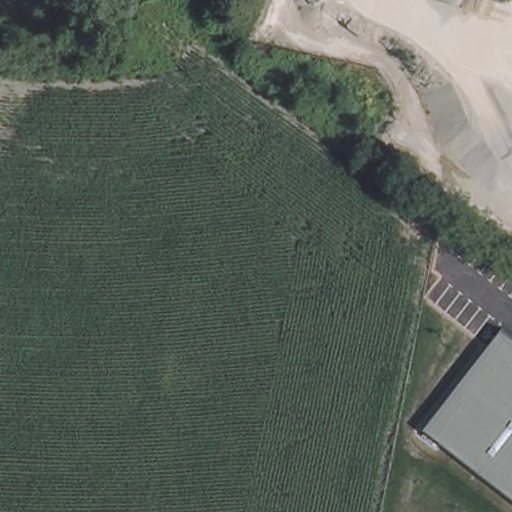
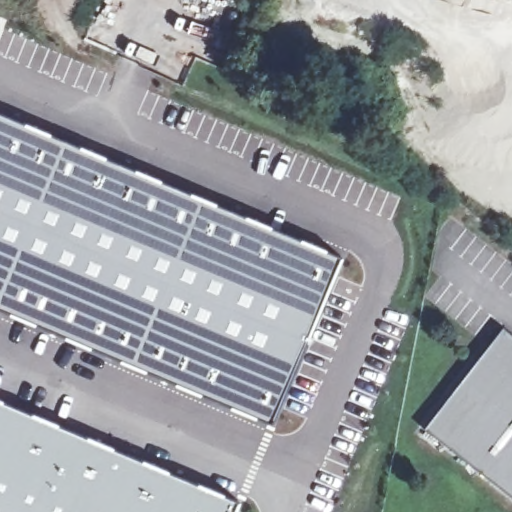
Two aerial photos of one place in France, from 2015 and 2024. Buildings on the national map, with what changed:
demolished [(148,26),(155,2),(203,15),(196,40),(148,26)]
new [(310,241),(340,255),(269,422),(242,411),(165,375),(125,360),(0,306),(0,110),(120,162),(310,241)]
unchanged [(512,337),(512,499),(423,430),(502,329),(512,337)]
new [(234,512),(0,512),(0,400),(238,501),(234,512)]

